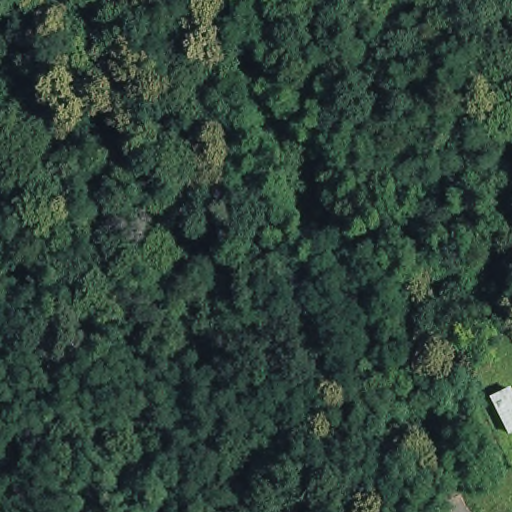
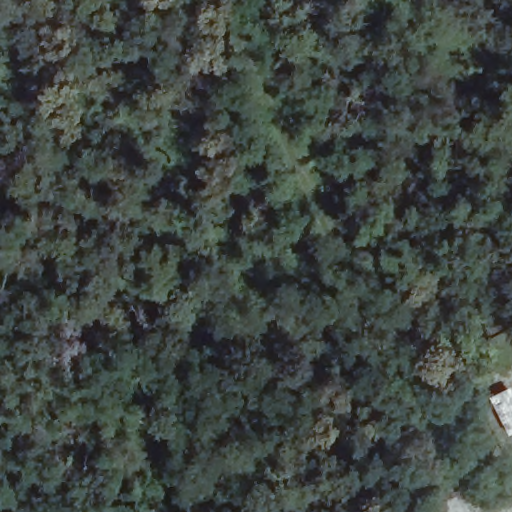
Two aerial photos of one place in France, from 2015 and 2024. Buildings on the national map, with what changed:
unchanged [(512,394),(512,428),(508,430),(490,395),(508,386),(512,394)]

